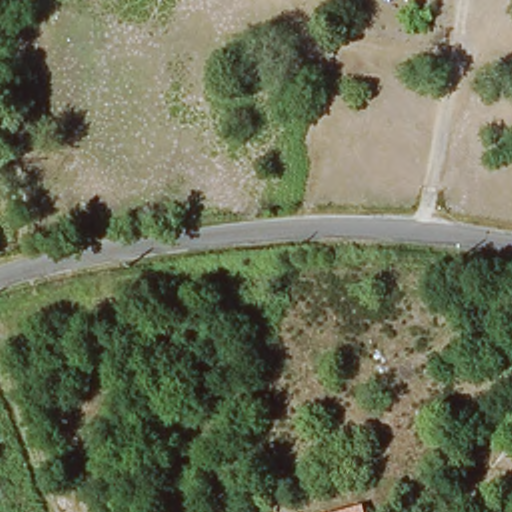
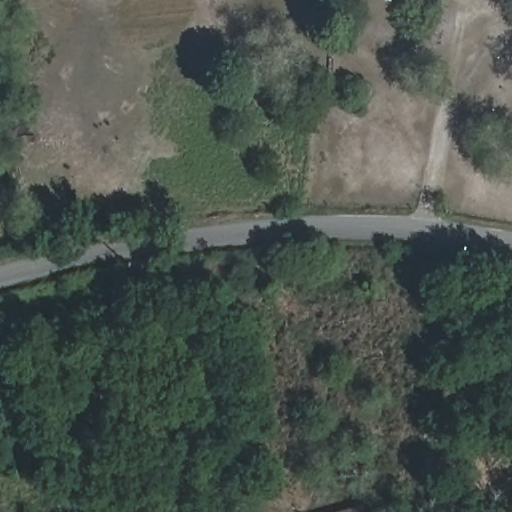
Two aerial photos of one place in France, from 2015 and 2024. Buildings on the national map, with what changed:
unchanged [(351,0),(362,0),(361,3),(351,0)]
unchanged [(366,512),(335,512),(365,504),(366,512)]

